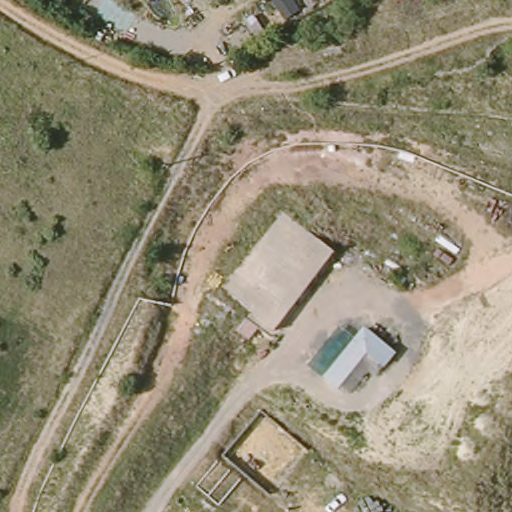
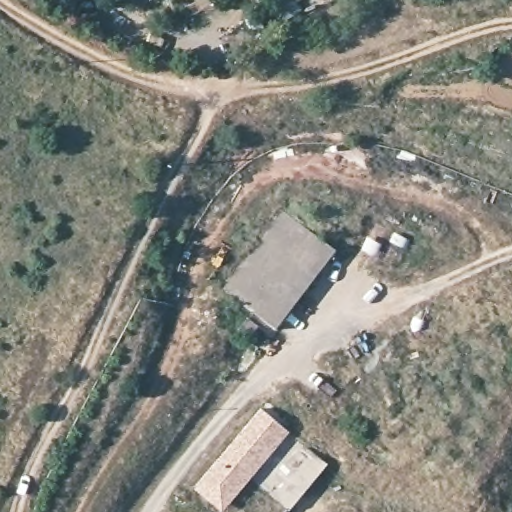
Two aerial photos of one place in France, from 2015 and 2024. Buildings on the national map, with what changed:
unchanged [(403,15),(385,18),(382,3),(392,0),(400,0),(403,15)]
unchanged [(223,290),(283,212),(335,252),(274,330),(223,290)]
demolished [(364,328),(396,350),(380,370),(367,357),(345,389),(326,377),(364,328)]
new [(327,464),(289,511),(245,475),(218,505),(197,485),(260,410),(327,464)]

